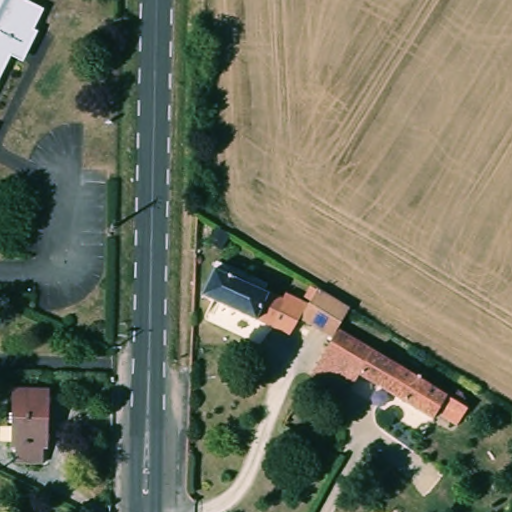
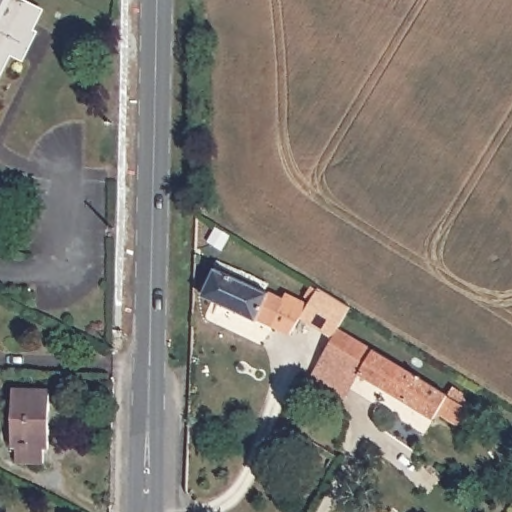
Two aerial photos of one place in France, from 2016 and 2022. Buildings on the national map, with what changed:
unchanged [(33,25),(36,26),(23,51),(13,46),(0,69),(0,0),(34,0),(43,5),(33,25)]
unchanged [(314,305),(324,289),(354,307),(340,329),(335,337),(306,319),(297,334),(277,323),(263,317),(260,321),(207,294),(219,267),(264,290),(288,302),(292,294),(314,305)]
unchanged [(364,343),(375,350),(361,375),(347,402),(309,382),(335,337),(340,329),(364,343)]
unchanged [(439,414),(437,419),(361,375),(375,350),(411,371),(454,397),(472,408),(461,427),(439,414)]
unchanged [(46,446),(40,445),(40,461),(15,461),(16,444),(11,444),(13,391),(49,392),(46,446)]

